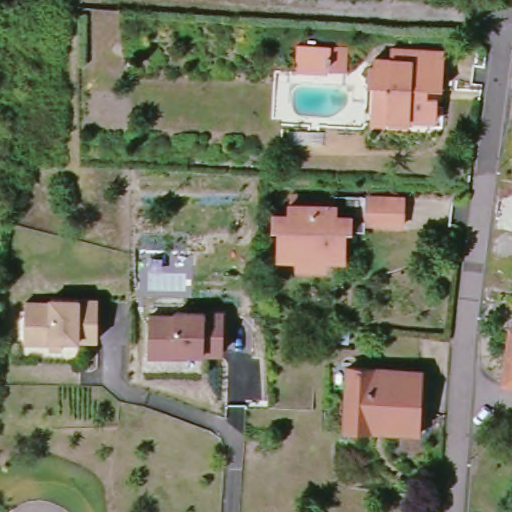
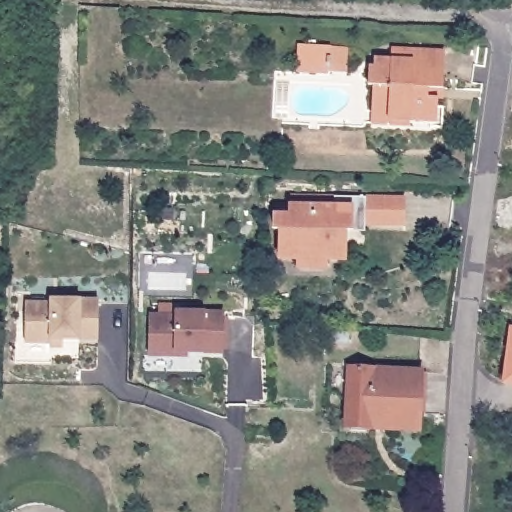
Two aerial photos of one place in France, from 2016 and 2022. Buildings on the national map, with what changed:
unchanged [(345,74),(331,73),(298,72),(298,47),(331,47),(346,48),(345,74)]
unchanged [(368,124),(369,112),(370,87),(365,87),(365,69),(370,69),(370,60),(388,60),(389,49),(441,52),(440,87),(425,87),(425,96),(436,96),(435,120),(407,119),(407,126),(368,124)]
unchanged [(366,228),(367,201),(403,202),(402,230),(366,228)]
unchanged [(277,257),(278,228),(274,228),(275,212),(290,213),(290,203),(351,206),(351,223),(351,231),(345,231),(343,259),(325,258),(324,265),(295,264),(296,257),(277,257)]
unchanged [(48,347),(48,342),(23,341),(25,300),(50,301),(51,297),(100,299),(97,341),(60,338),(60,347),(48,347)]
unchanged [(223,310),(221,350),(175,347),(175,351),(150,350),(151,312),(175,312),(175,307),(223,310)]
unchanged [(330,342),(331,331),(351,332),(350,343),(330,342)]
unchanged [(506,379),(512,338),(512,380),(506,379)]
unchanged [(347,425),(350,368),(421,372),(420,415),(371,412),(370,427),(347,425)]

